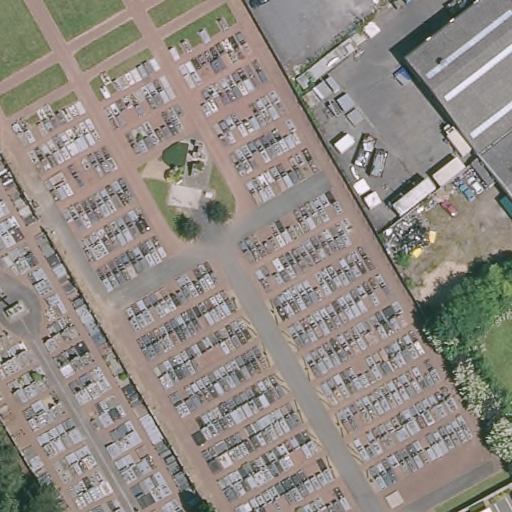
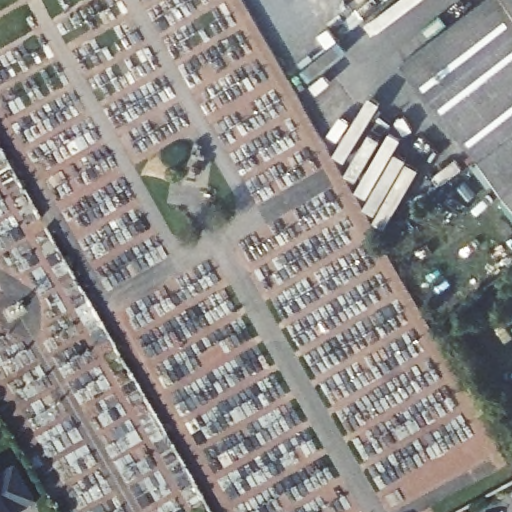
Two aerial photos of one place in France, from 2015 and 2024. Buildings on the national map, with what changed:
unchanged [(489,0),(512,0),(512,135),(484,157),(409,61),(489,0)]
unchanged [(484,157),(512,135),(512,193),(484,157)]
new [(32,506),(22,512),(0,512),(0,479),(12,472),(32,506)]

